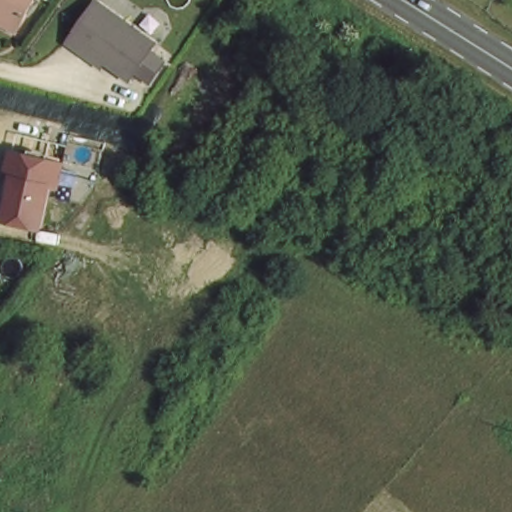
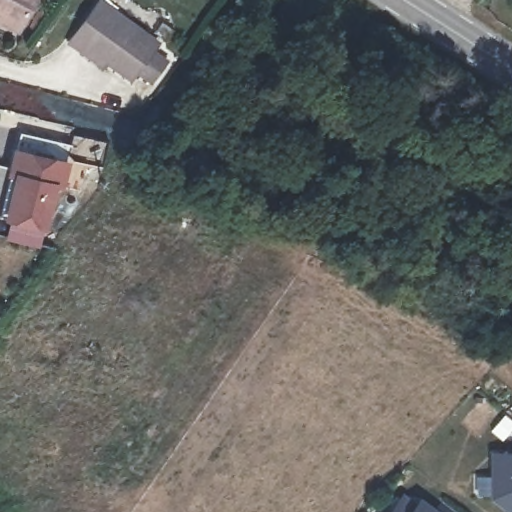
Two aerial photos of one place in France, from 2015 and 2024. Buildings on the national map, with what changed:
unchanged [(0,0),(30,0),(13,31),(0,24),(0,0)]
unchanged [(81,47),(68,37),(95,0),(101,0),(155,40),(130,76),(105,57),(101,62),(81,47)]
unchanged [(67,188),(57,185),(46,231),(3,221),(13,172),(10,171),(17,148),(72,160),(67,188)]
new [(505,512),(490,500),(489,451),(512,451),(512,512),(505,512)]
new [(415,503),(420,496),(440,512),(389,512),(404,493),(415,503)]

